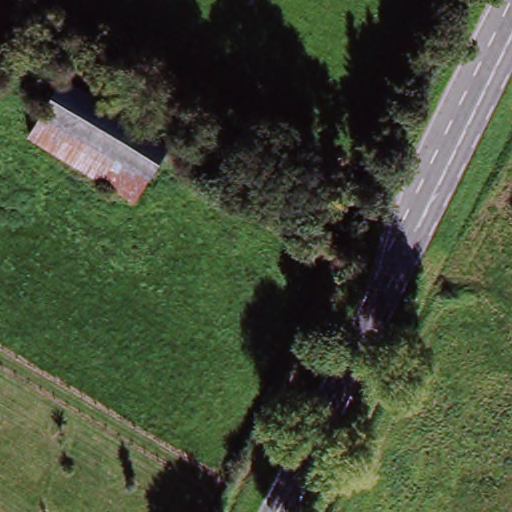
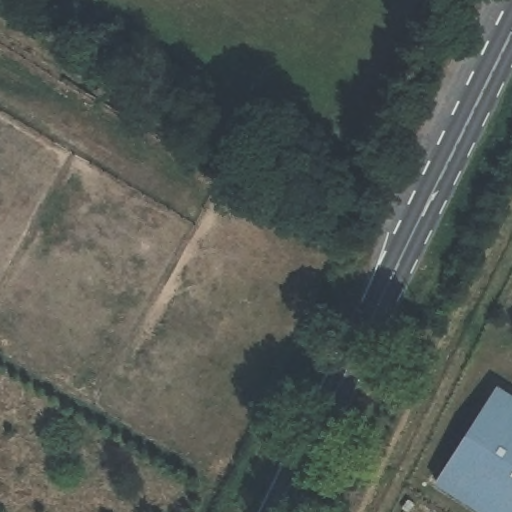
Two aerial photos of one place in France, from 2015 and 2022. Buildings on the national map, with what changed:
demolished [(162,158),(145,189),(36,124),(55,94),(162,158)]
new [(512,512),(483,512),(436,482),(497,385),(512,395),(512,512)]

